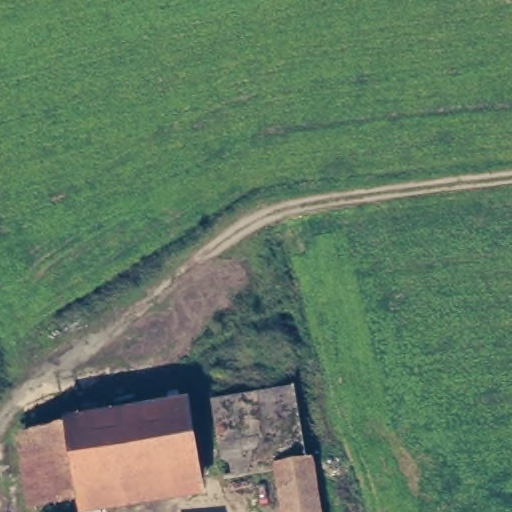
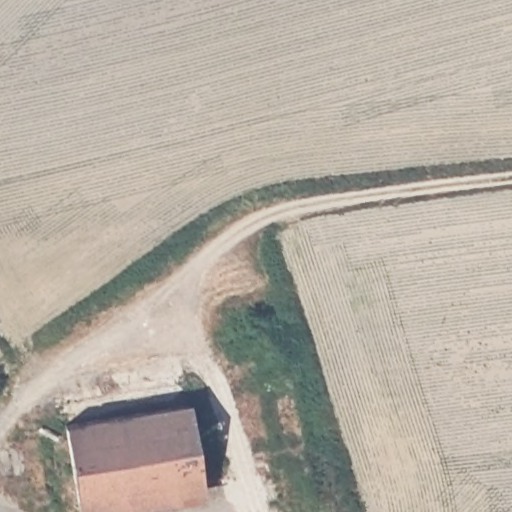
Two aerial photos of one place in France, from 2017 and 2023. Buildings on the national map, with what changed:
unchanged [(227,491),(102,512),(79,512),(77,503),(57,424),(210,397),(224,473),(227,491)]
demolished [(279,512),(272,463),(305,458),(315,456),(322,512),(279,512)]

